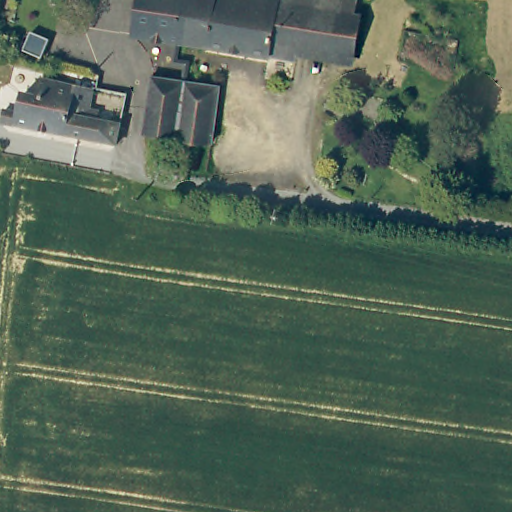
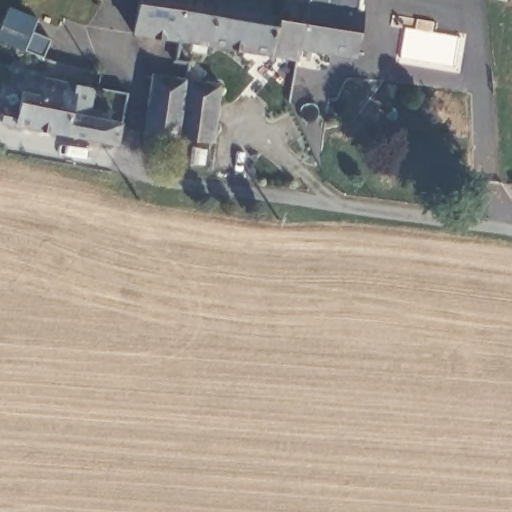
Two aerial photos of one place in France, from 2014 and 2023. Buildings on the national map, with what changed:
unchanged [(139,0),(188,0),(180,41),(134,35),(139,0)]
unchanged [(180,41),(188,0),(338,0),(358,2),(365,3),(360,45),(305,39),(302,57),(293,56),(180,41)]
unchanged [(338,0),(358,0),(358,2),(338,0)]
demolished [(407,27),(464,36),(459,67),(403,62),(407,27)]
unchanged [(120,141),(90,137),(11,126),(13,113),(22,113),(26,93),(39,94),(43,76),(72,81),(100,86),(94,113),(125,117),(120,141)]
unchanged [(146,135),(154,77),(195,82),(185,140),(146,135)]
unchanged [(225,85),(217,144),(185,140),(195,82),(225,85)]

